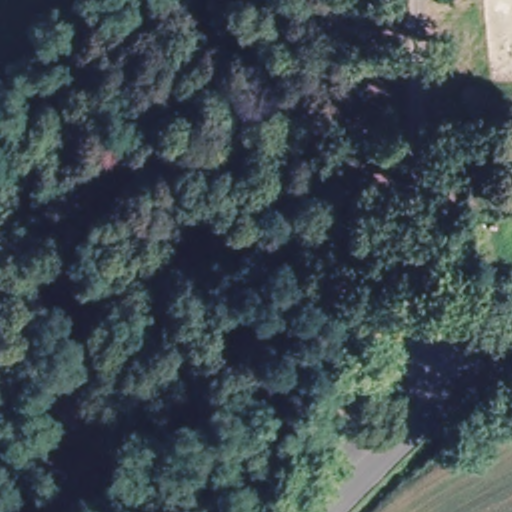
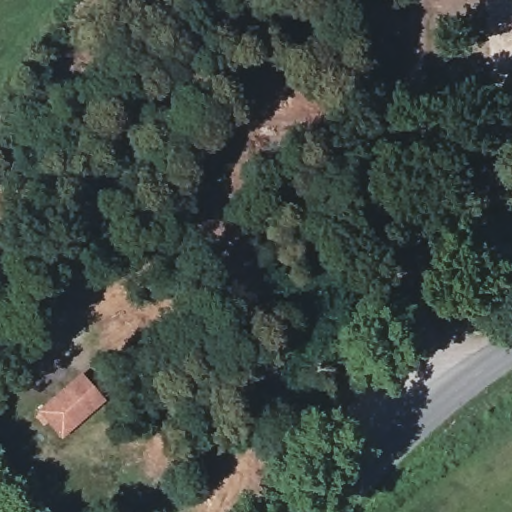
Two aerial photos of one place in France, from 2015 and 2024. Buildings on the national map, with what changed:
new [(94,412),(62,440),(37,412),(76,378),(85,388),(82,398),(94,412)]

